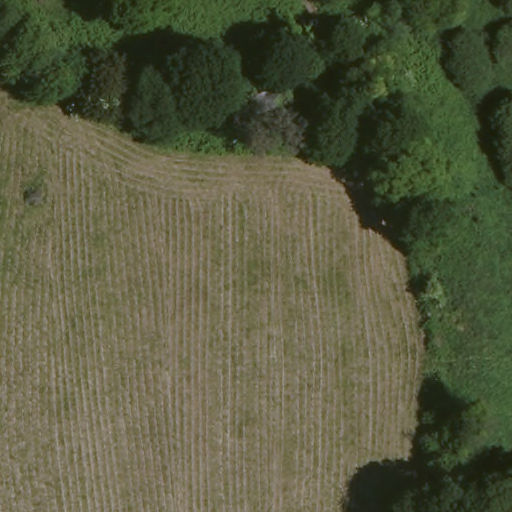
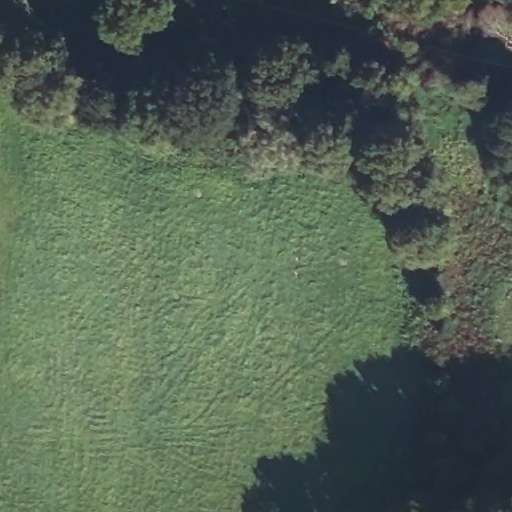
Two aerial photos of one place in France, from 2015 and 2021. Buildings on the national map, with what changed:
unchanged [(292,112),(237,127),(228,93),(287,77),(289,82),(299,80),(305,100),(291,105),(292,112)]

